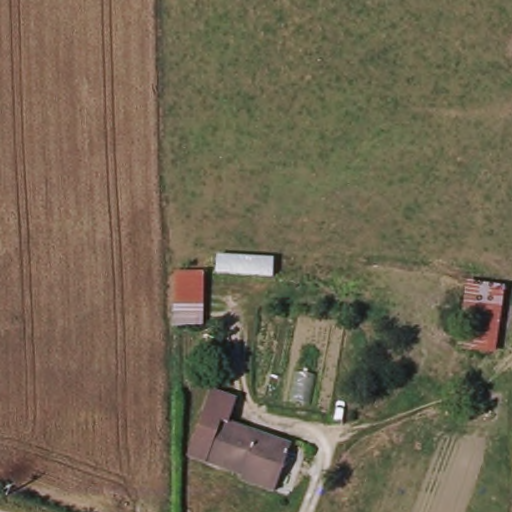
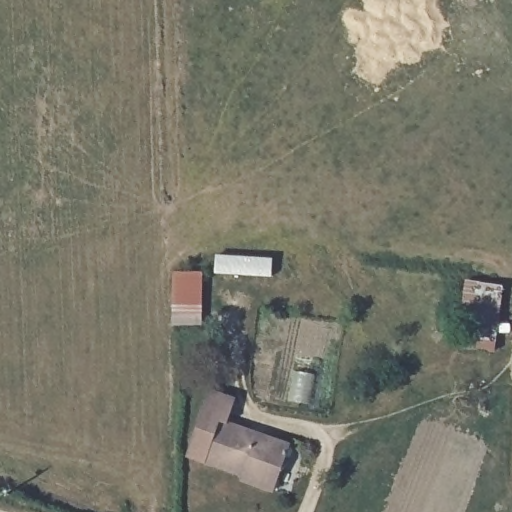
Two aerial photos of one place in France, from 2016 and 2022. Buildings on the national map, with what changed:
unchanged [(217,274),(217,256),(272,258),(272,277),(217,274)]
unchanged [(206,270),(208,323),(180,326),(177,272),(206,270)]
unchanged [(458,350),(469,281),(508,288),(497,355),(458,350)]
unchanged [(277,488),(245,476),(245,472),(190,453),(215,389),(230,394),(222,418),(293,443),(277,488)]

